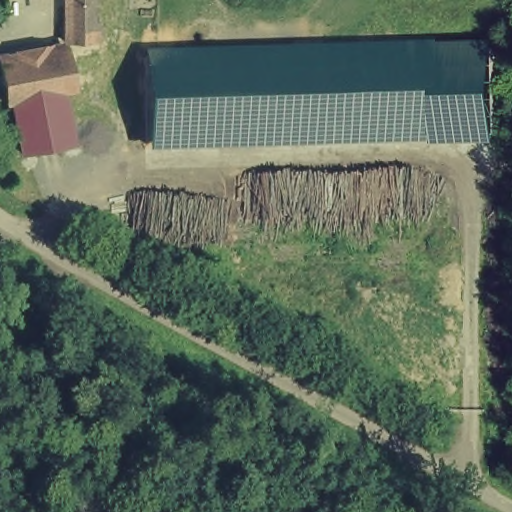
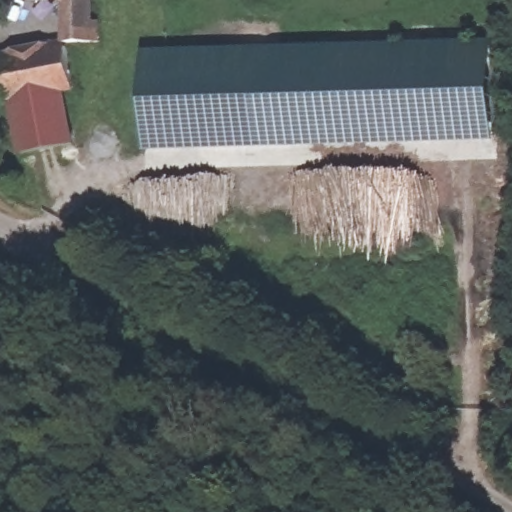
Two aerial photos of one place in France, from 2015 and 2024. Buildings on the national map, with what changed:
unchanged [(121,41),(101,42),(72,43),(78,90),(97,87),(102,139),(17,157),(0,55),(0,51),(59,43),(60,0),(120,0),(121,41)]
unchanged [(498,131),(146,152),(141,65),(291,56),(290,46),(317,45),(317,55),(492,45),(498,131)]

